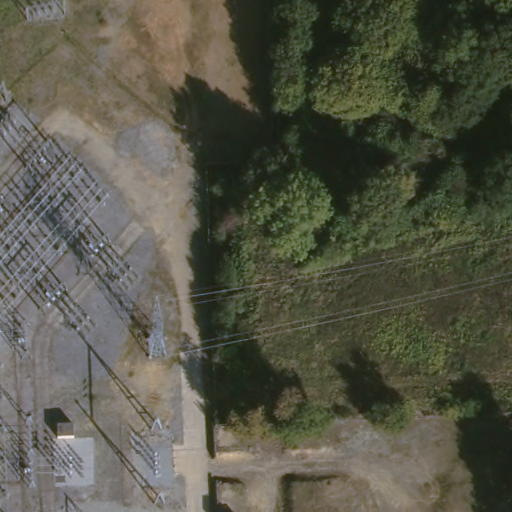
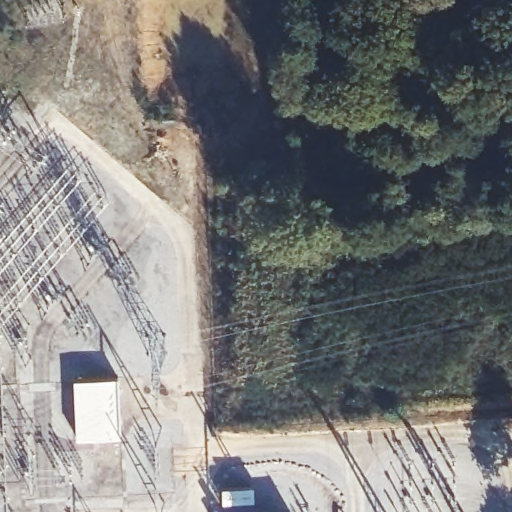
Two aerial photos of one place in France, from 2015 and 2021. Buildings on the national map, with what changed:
new [(115,382),(117,441),(74,442),(72,383),(115,382)]

